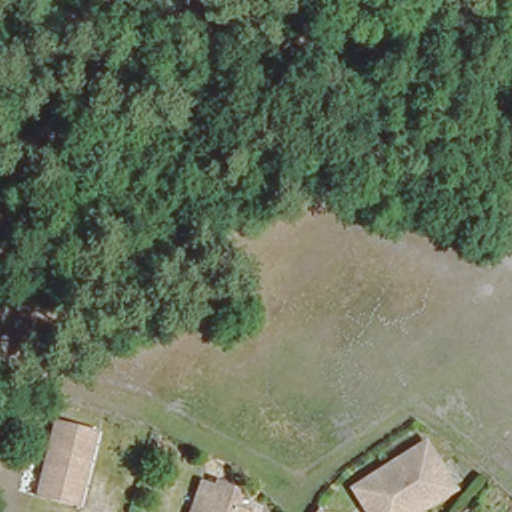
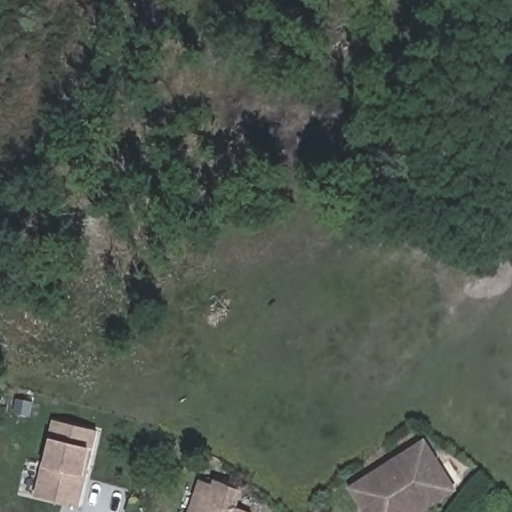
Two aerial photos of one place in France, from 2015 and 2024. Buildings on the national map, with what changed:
unchanged [(32,500),(50,424),(92,434),(74,510),(32,500)]
unchanged [(347,495),(419,449),(444,489),(417,506),(415,503),(400,512),(358,512),(347,495)]
unchanged [(204,475),(217,479),(220,473),(241,479),(237,492),(257,500),(253,512),(193,512),(204,475)]

